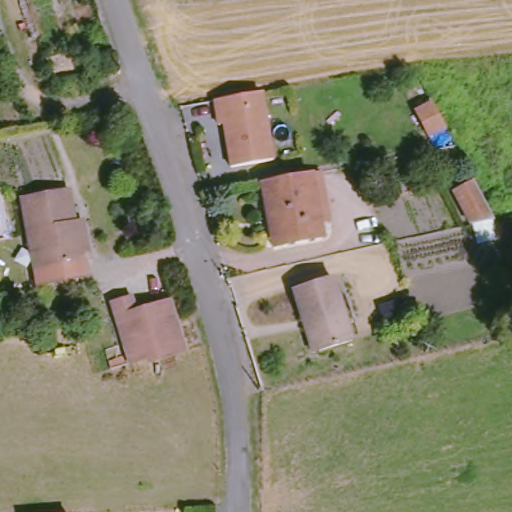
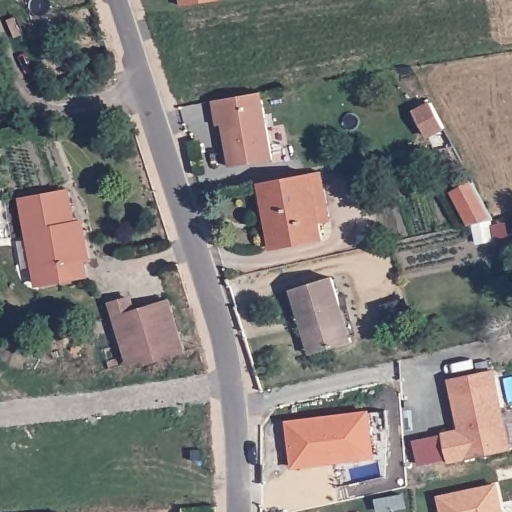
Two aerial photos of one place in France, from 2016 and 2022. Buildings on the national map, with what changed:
new [(182,0),(209,0),(183,4),(182,0)]
unchanged [(269,161),(227,168),(219,117),(213,118),(211,101),(259,93),(269,161)]
unchanged [(431,108),(444,133),(428,141),(415,116),(431,108)]
unchanged [(281,250),(274,216),(267,217),(261,185),(311,177),(323,175),(331,222),(319,224),(323,244),(281,250)]
unchanged [(491,219),(468,224),(453,192),(472,183),(491,219)]
unchanged [(71,189),(79,223),(86,222),(93,257),(88,259),(90,271),(41,281),(38,267),(44,265),(38,230),(31,231),(24,198),(71,189)]
unchanged [(306,331),(294,289),(332,278),(351,343),(318,352),(313,354),(306,331)]
unchanged [(152,355),(133,360),(115,301),(134,295),(138,309),(152,355)]
unchanged [(138,309),(173,298),(188,348),(153,358),(152,355),(138,309)]
new [(442,434),(459,429),(448,379),(494,368),(512,446),(512,449),(449,461),(442,434)]
new [(334,463),(293,467),(289,423),(369,414),(374,451),(374,458),(334,463)]
new [(438,496),(498,483),(504,512),(441,512),(438,496)]

